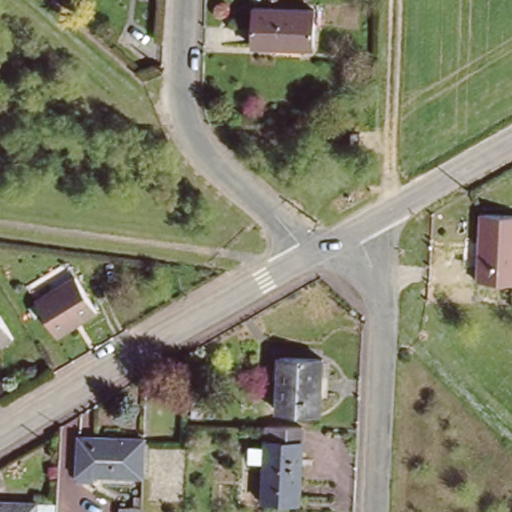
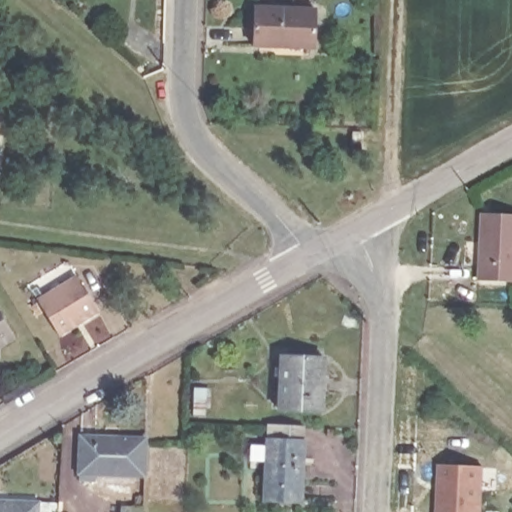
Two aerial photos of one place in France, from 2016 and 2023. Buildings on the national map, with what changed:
unchanged [(313,51),(252,49),(254,10),(315,12),(313,51)]
unchanged [(480,210),(512,211),(512,247),(478,245),(480,210)]
unchanged [(477,277),(478,245),(512,247),(512,279),(477,277)]
unchanged [(55,331),(45,316),(36,300),(75,279),(95,310),(75,320),(55,331)]
unchanged [(0,344),(0,311),(14,335),(0,344)]
unchanged [(279,357),(322,358),(320,412),(277,411),(279,357)]
unchanged [(72,474),(75,430),(142,433),(140,477),(72,474)]
unchanged [(264,431),(302,432),(300,509),(262,507),(264,431)]
new [(482,468),(480,512),(434,512),(437,465),(482,468)]
unchanged [(0,512),(0,511),(16,512),(0,512)]

